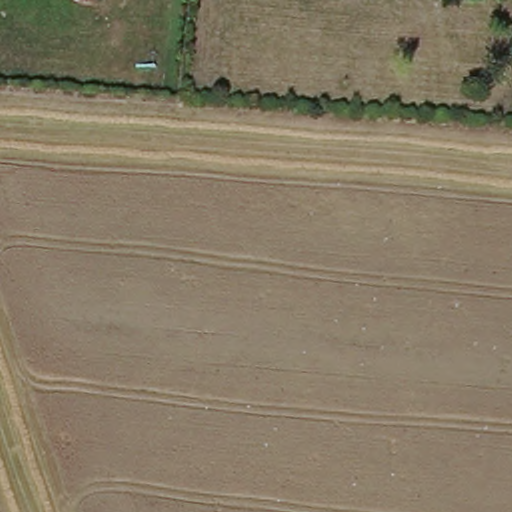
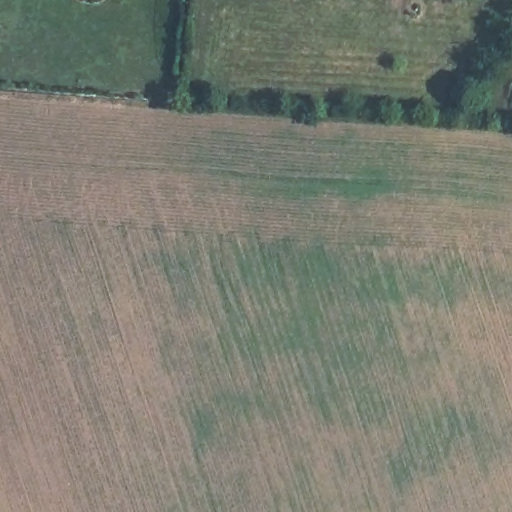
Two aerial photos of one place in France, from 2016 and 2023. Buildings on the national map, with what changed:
[]

